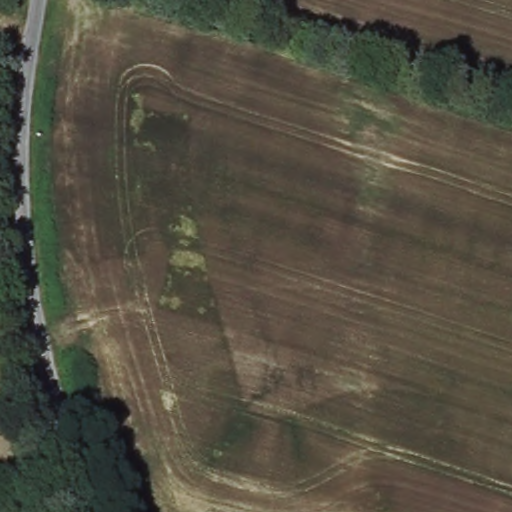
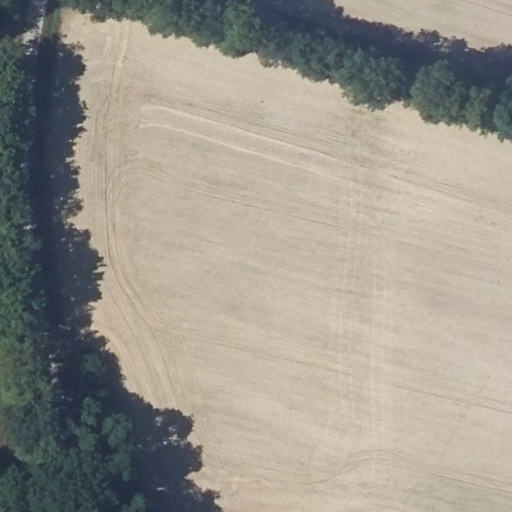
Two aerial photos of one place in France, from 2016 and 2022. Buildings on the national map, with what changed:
[]

